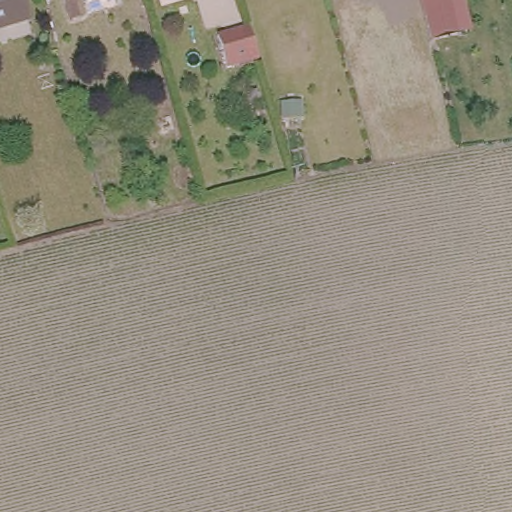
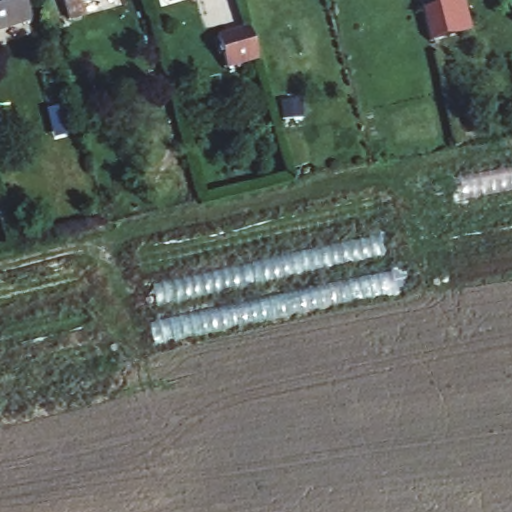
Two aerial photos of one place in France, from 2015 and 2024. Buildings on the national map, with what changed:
unchanged [(0,27),(0,0),(25,0),(30,19),(0,27)]
unchanged [(82,0),(84,6),(67,11),(64,0),(82,0)]
demolished [(412,21),(408,0),(438,0),(441,16),(412,21)]
new [(434,40),(425,0),(466,0),(474,33),(434,40)]
unchanged [(247,23),(256,54),(225,62),(216,31),(247,23)]
new [(464,197),(459,172),(512,162),(512,188),(464,197)]
new [(390,290),(155,341),(135,256),(375,200),(390,290)]

